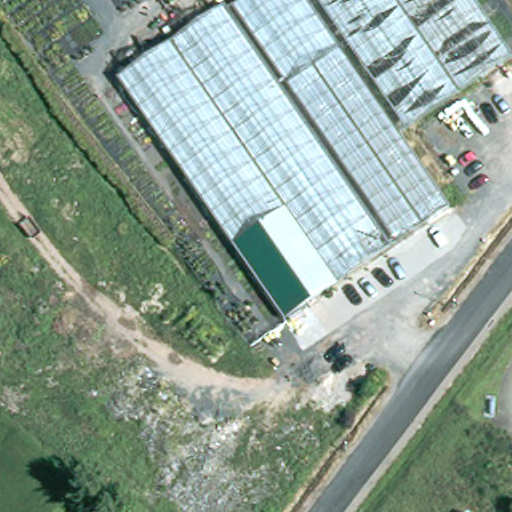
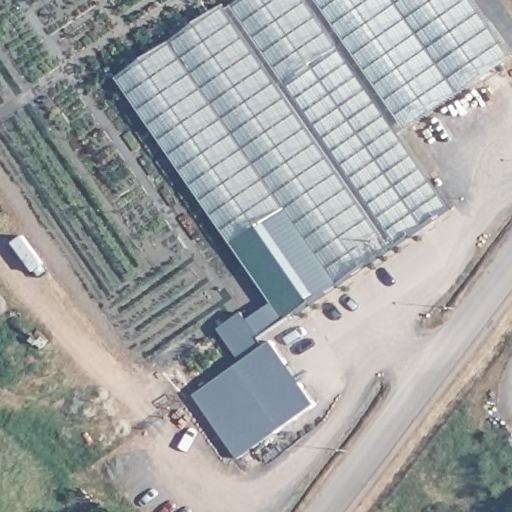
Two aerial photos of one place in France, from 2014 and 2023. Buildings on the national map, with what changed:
unchanged [(455,212),(391,256),(232,14),(252,0),(332,0),(420,129),(405,140),(455,212)]
unchanged [(420,129),(332,0),(428,0),(487,83),(420,129)]
unchanged [(487,83),(428,0),(476,0),(512,53),(512,65),(487,83)]
unchanged [(289,326),(122,84),(229,10),(232,14),(391,256),(289,326)]
new [(260,336),(267,345),(273,341),(317,404),(237,460),(194,395),(242,361),(219,328),(244,312),(249,319),(274,303),(285,320),(260,336)]

